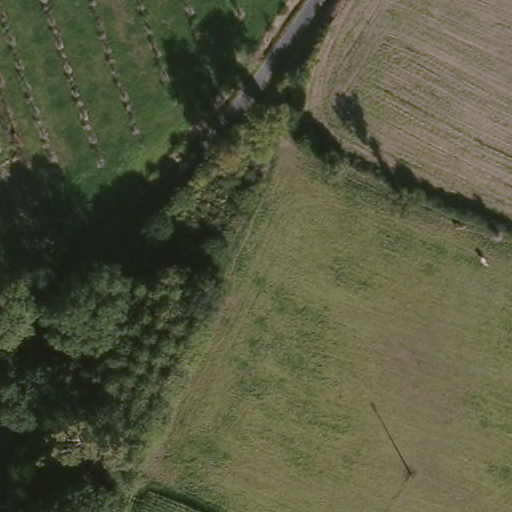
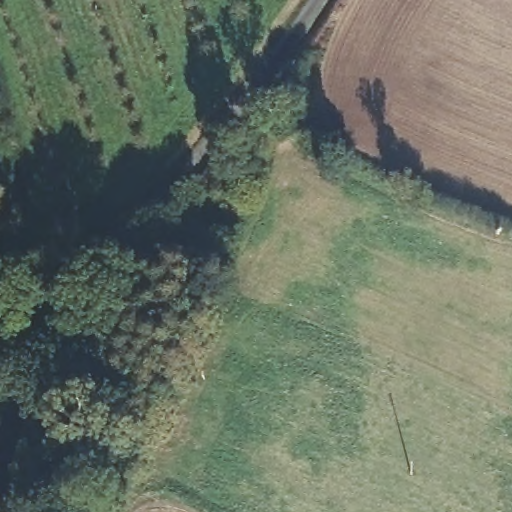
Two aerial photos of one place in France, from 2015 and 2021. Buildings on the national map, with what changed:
[]

